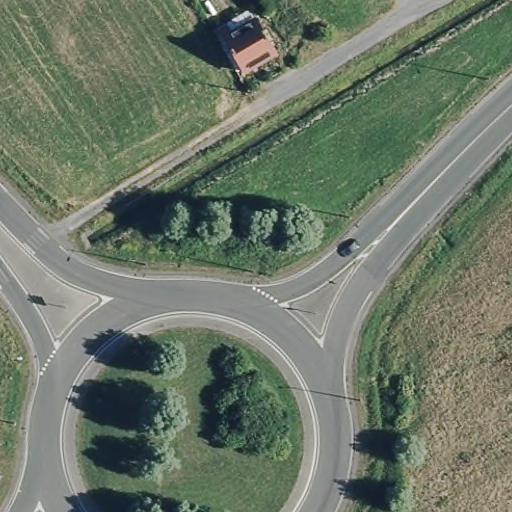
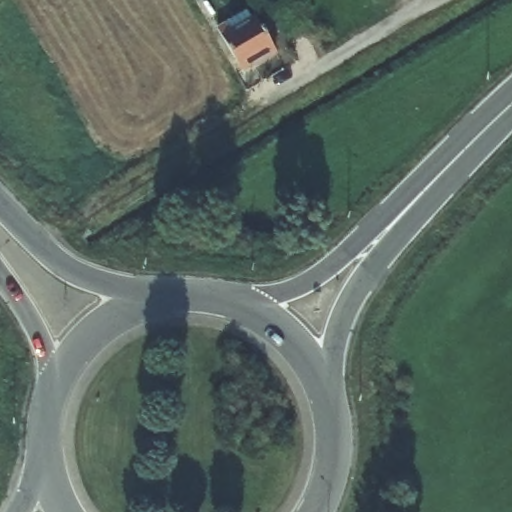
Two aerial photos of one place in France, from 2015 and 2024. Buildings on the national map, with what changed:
unchanged [(217,30),(226,25),(231,33),(256,19),(275,51),(242,71),(217,30)]

